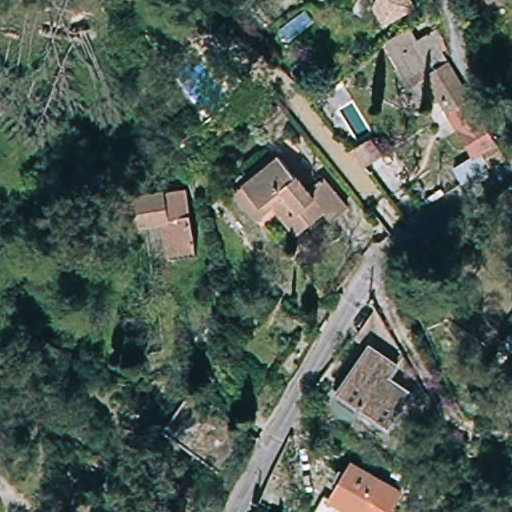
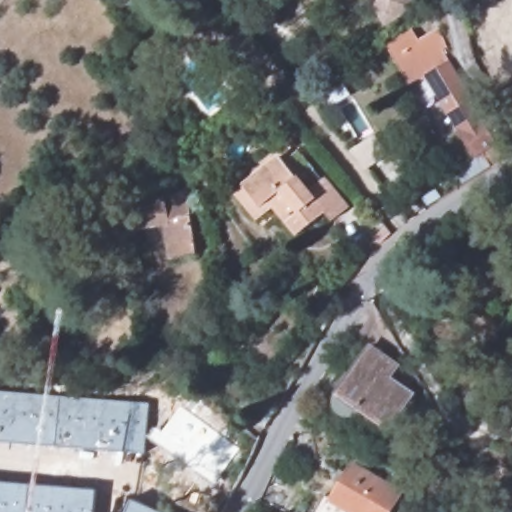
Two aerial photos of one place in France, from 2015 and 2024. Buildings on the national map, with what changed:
unchanged [(414,9),(384,26),(374,8),(379,0),(409,0),(414,9)]
unchanged [(442,54),(449,66),(463,90),(480,121),(505,160),(490,171),(480,155),(474,159),(459,135),(425,80),(410,89),(395,62),(387,47),(409,35),(417,50),(437,35),(446,51),(442,54)]
unchanged [(363,166),(349,150),(348,150),(349,149),(370,135),(387,160),(367,172),(363,166)]
unchanged [(272,156),(291,180),(295,177),(305,190),(320,176),(344,205),(327,221),(319,211),(288,237),(240,181),(272,156)]
unchanged [(288,237),(276,247),(228,190),(240,181),(288,237)]
unchanged [(194,190),(208,259),(184,263),(173,223),(155,225),(153,197),(194,190)]
unchanged [(402,363),(388,387),(405,397),(385,433),(353,414),(349,415),(347,415),(342,413),(342,409),(344,404),(373,360),(360,353),(379,323),(402,363)]
new [(145,454),(0,442),(0,391),(149,404),(145,454)]
new [(215,485),(150,437),(157,427),(162,431),(181,405),(241,449),(215,485)]
unchanged [(395,485),(383,512),(356,512),(351,510),(350,512),(326,512),(350,461),(395,485)]
new [(0,512),(0,482),(96,490),(94,512),(0,512)]
unchanged [(307,512),(279,512),(274,510),(285,485),(313,498),(307,512)]
new [(161,512),(124,512),(131,498),(161,512)]

